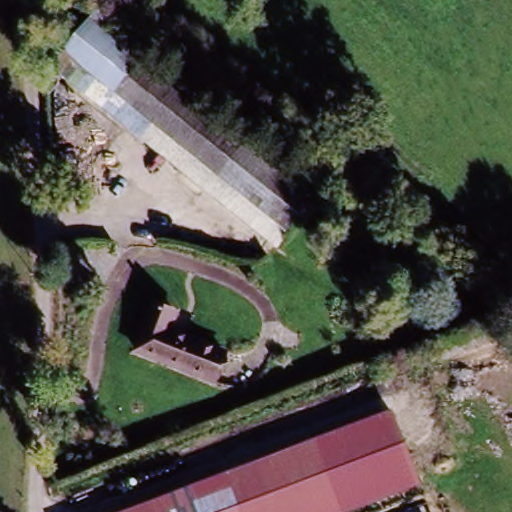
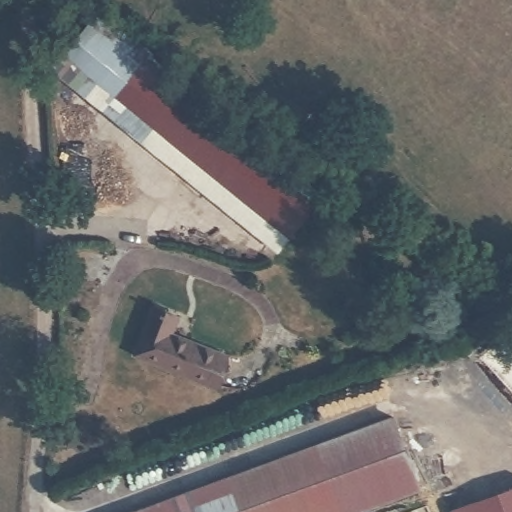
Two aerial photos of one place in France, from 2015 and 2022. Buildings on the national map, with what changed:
unchanged [(53,65),(77,30),(309,204),(285,237),(53,65)]
unchanged [(172,335),(228,363),(214,391),(137,353),(159,307),(180,318),(172,335)]
unchanged [(415,485),(346,512),(142,512),(387,415),(415,485)]
new [(512,489),(512,512),(471,512),(469,506),(512,489)]

